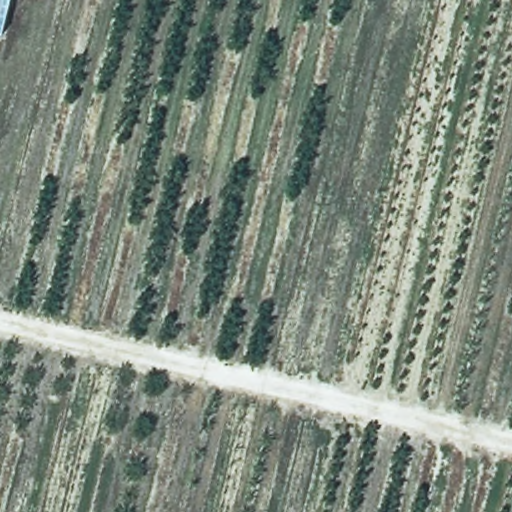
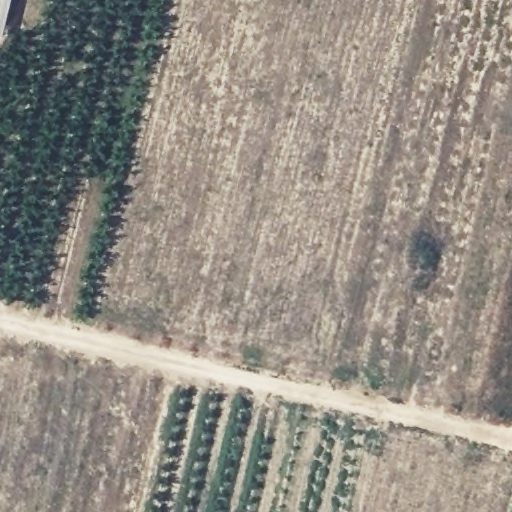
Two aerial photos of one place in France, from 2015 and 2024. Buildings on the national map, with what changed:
unchanged [(0,0),(8,0),(0,29),(0,0)]

